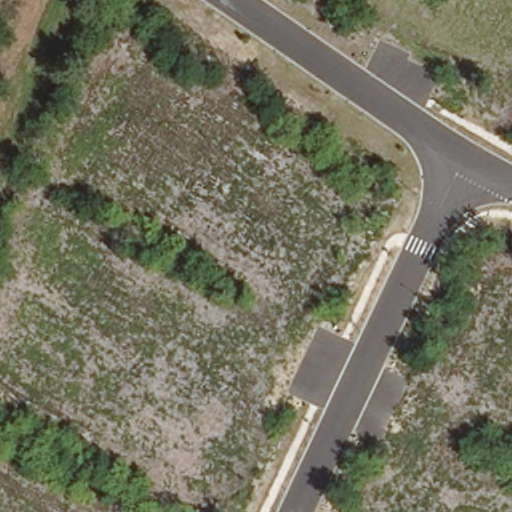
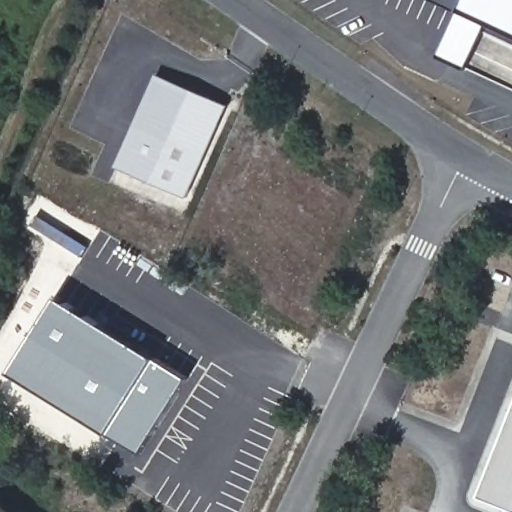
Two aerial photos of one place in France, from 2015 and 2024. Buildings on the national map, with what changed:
new [(427,0),(512,0),(512,40),(489,30),(462,17),(427,0)]
new [(462,17),(489,30),(468,75),(440,62),(462,17)]
new [(114,167),(157,74),(227,106),(184,199),(114,167)]
new [(140,453),(10,373),(56,298),(186,379),(140,453)]
new [(475,501),(512,409),(512,512),(504,512),(475,501)]
new [(0,509),(4,512),(0,512),(0,509)]

